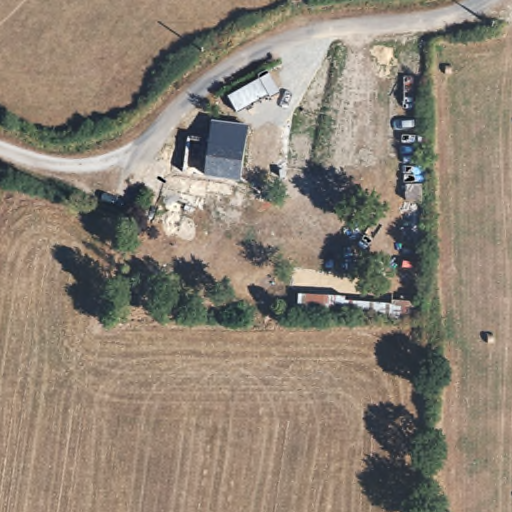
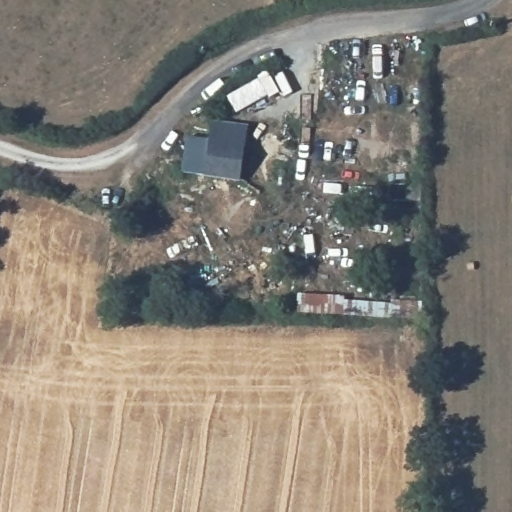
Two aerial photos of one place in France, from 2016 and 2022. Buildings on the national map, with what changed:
unchanged [(188,124),(213,128),(205,180),(180,176),(188,124)]
unchanged [(245,133),(236,185),(234,185),(205,180),(213,128),(245,133)]

